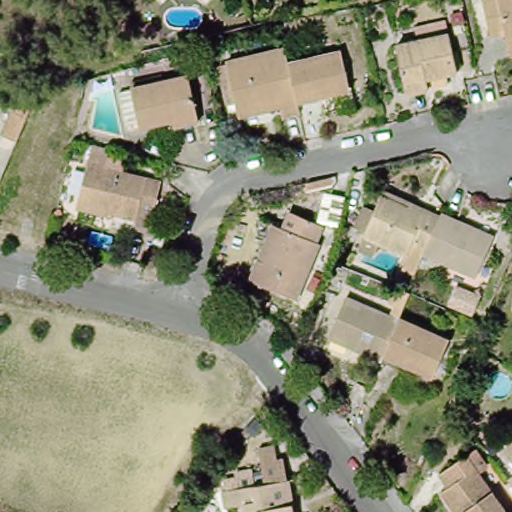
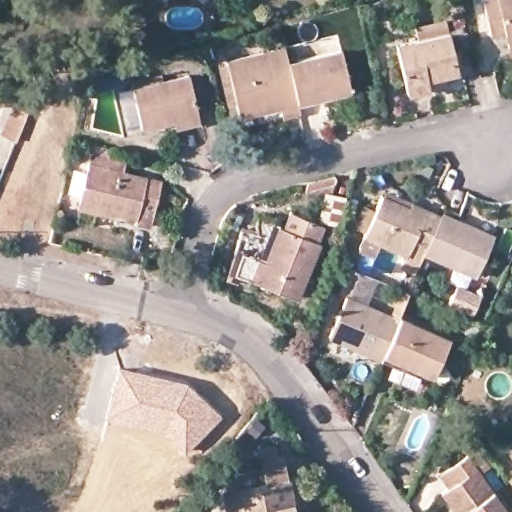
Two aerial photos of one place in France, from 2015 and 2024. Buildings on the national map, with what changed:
unchanged [(503,41),(500,26),(486,30),(480,0),(512,0),(512,48),(505,50),(503,41)]
unchanged [(462,11),(464,21),(455,23),(452,13),(462,11)]
unchanged [(418,34),(416,22),(442,16),(445,28),(448,27),(452,44),(459,43),(463,61),(456,62),(457,66),(447,68),(450,78),(407,88),(405,79),(397,39),(418,34)]
unchanged [(240,111),(237,97),(227,99),(219,60),(228,58),(227,54),(285,41),(288,57),(298,96),(300,107),(282,111),(280,101),(258,106),(240,111)]
unchanged [(298,96),(288,57),(341,46),(350,85),(353,84),(357,99),(324,106),(321,91),(298,96)]
unchanged [(140,85),(153,82),(152,76),(182,70),(183,76),(210,70),(220,115),(195,121),(193,115),(162,121),(160,117),(147,120),(140,85)]
unchanged [(110,97),(110,87),(119,88),(133,84),(143,133),(111,126),(117,97),(110,97)]
unchanged [(2,133),(13,106),(31,106),(17,140),(2,133)]
unchanged [(88,161),(162,180),(154,211),(139,207),(137,217),(79,202),(88,161)]
unchanged [(305,181),(335,174),(330,184),(302,190),(305,181)]
unchanged [(360,246),(365,232),(355,228),(365,205),(376,209),(382,194),(384,189),(412,201),(440,213),(424,251),(415,270),(401,264),(407,252),(380,241),(375,253),(360,246)]
unchanged [(287,205),(319,218),(312,235),(315,236),(292,291),(247,272),(255,254),(270,218),(277,221),(280,221),(287,205)]
unchanged [(475,275),(424,251),(440,213),(493,235),(475,275)]
unchanged [(390,314),(395,304),(389,302),(396,285),(407,289),(409,291),(398,314),(382,353),(380,358),(329,335),(346,295),(390,314)]
unchanged [(471,310),(452,301),(458,285),(477,294),(471,310)]
unchanged [(398,314),(448,337),(432,375),(382,353),(398,314)]
unchanged [(480,324),(475,336),(464,330),(469,319),(480,324)]
new [(118,366),(186,383),(203,397),(222,416),(185,455),(167,439),(155,432),(105,418),(118,366)]
unchanged [(505,443),(512,437),(512,453),(505,443)]
unchanged [(456,509),(440,486),(447,481),(440,468),(467,449),(511,512),(458,512),(456,509)]
unchanged [(246,510),(234,512),(226,512),(223,497),(243,494),(242,484),(255,482),(256,491),(267,489),(262,456),(276,454),(278,465),(285,465),(294,512),(247,512),(246,510)]
unchanged [(508,473),(512,470),(512,478),(508,473)]

